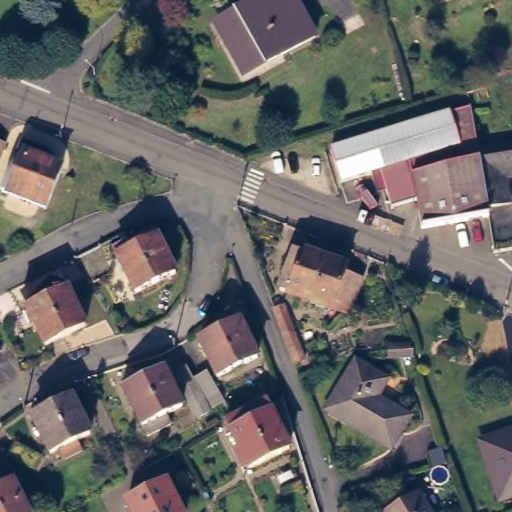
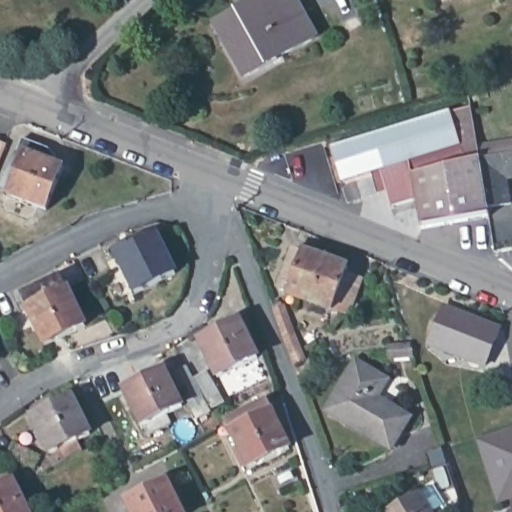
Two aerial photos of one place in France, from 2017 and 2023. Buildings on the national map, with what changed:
unchanged [(319,31),(284,48),(281,44),(249,59),(236,33),(227,37),(218,19),(246,5),(243,0),(303,0),(319,31)]
unchanged [(376,158),(336,169),(326,138),(470,107),(475,138),(378,166),(376,158)]
unchanged [(51,142),(46,155),(67,163),(52,204),(7,187),(28,133),(51,142)]
unchanged [(475,138),(477,148),(484,195),(486,202),(419,214),(414,187),(388,195),(378,166),(475,138)]
unchanged [(503,168),(506,191),(484,195),(477,148),(512,143),(512,167),(503,168)]
unchanged [(149,225),(171,267),(130,287),(108,245),(149,225)]
unchanged [(349,297),(336,291),(329,303),(280,281),(299,241),(306,244),(308,241),(349,261),(349,263),(363,269),(349,297)]
new [(93,248),(105,268),(88,279),(74,257),(93,248)]
unchanged [(66,266),(88,317),(50,335),(38,310),(29,315),(23,301),(32,297),(27,285),(66,266)]
unchanged [(280,298),(301,349),(291,353),(271,300),(280,298)]
new [(444,307),(500,330),(485,367),(429,344),(444,307)]
unchanged [(246,318),(264,354),(226,373),(208,337),(246,318)]
unchanged [(359,354),(388,371),(379,389),(413,408),(396,439),(352,415),(356,407),(336,395),(359,354)]
unchanged [(171,369),(184,363),(196,386),(182,392),(186,399),(148,419),(128,378),(164,359),(171,369)]
unchanged [(205,366),(214,385),(203,391),(193,372),(205,366)]
unchanged [(289,440),(250,461),(227,412),(264,391),(289,440)]
unchanged [(74,393),(93,428),(54,448),(36,414),(74,393)]
unchanged [(489,461),(479,428),(512,418),(512,479),(497,484),(489,461)]
unchanged [(189,503),(172,512),(144,512),(133,488),(172,468),(189,503)]
unchanged [(32,512),(0,512),(0,486),(16,478),(32,512)]
unchanged [(433,512),(387,512),(385,508),(418,488),(433,512)]

